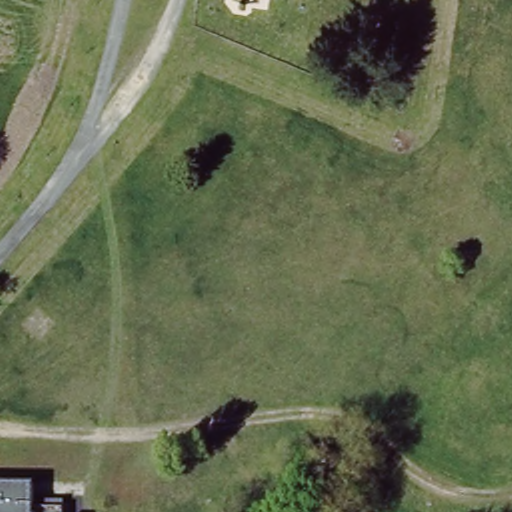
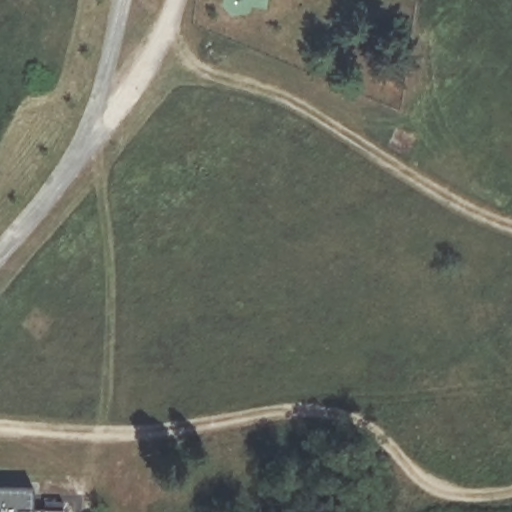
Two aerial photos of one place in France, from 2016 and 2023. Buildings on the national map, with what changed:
unchanged [(42,512),(0,512),(0,491),(42,492),(42,512)]

